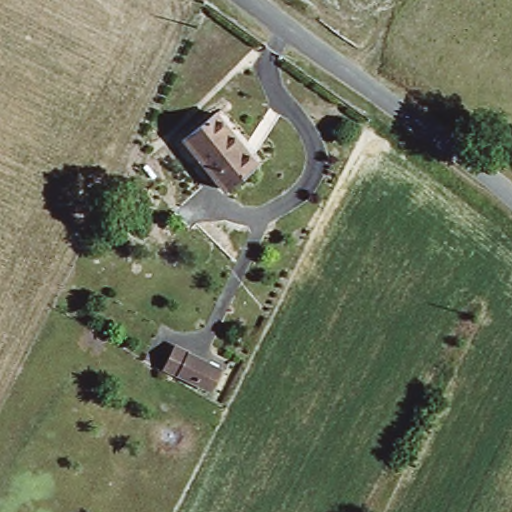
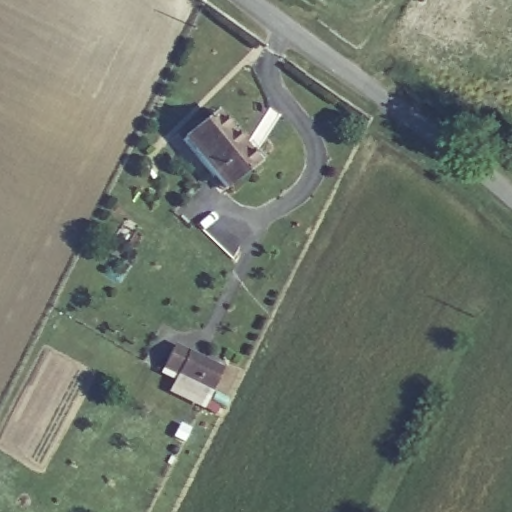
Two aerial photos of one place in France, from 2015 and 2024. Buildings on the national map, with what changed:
unchanged [(215,107),(254,161),(220,186),(181,134),(215,107)]
unchanged [(204,388),(172,372),(160,366),(169,347),(181,353),(212,371),(204,388)]

